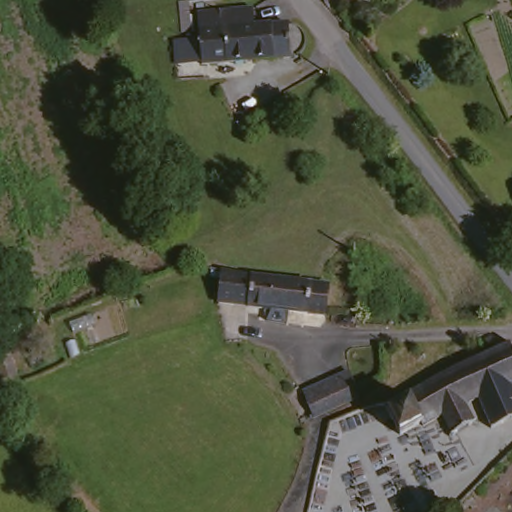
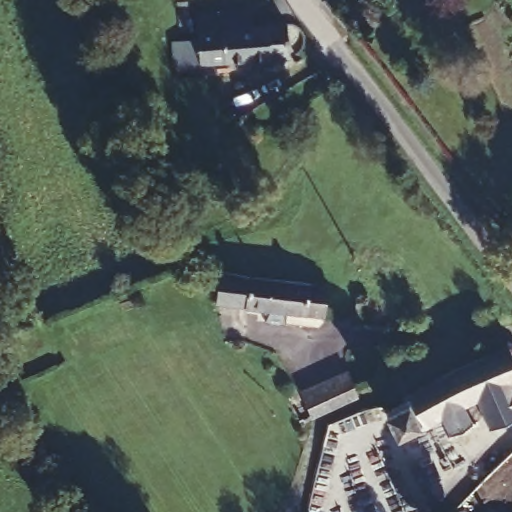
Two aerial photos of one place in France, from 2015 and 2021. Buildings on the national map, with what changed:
unchanged [(247,16),(250,38),(247,38),(194,42),(192,21),(247,16)]
unchanged [(247,38),(250,38),(270,36),(285,34),(287,67),(274,66),(207,72),(193,72),(194,42),(247,38)]
unchanged [(262,323),(262,310),(242,309),(217,308),(217,272),(242,277),(255,278),(322,283),(322,314),(288,311),(288,324),(262,323)]
unchanged [(512,362),(512,420),(487,432),(475,410),(466,414),(472,426),(447,438),(437,417),(390,437),(376,405),(506,353),(512,362)]
unchanged [(1,379),(0,379),(0,375),(1,379)]
unchanged [(340,375),(346,384),(353,399),(345,404),(313,421),(303,409),(297,398),(340,375)]

